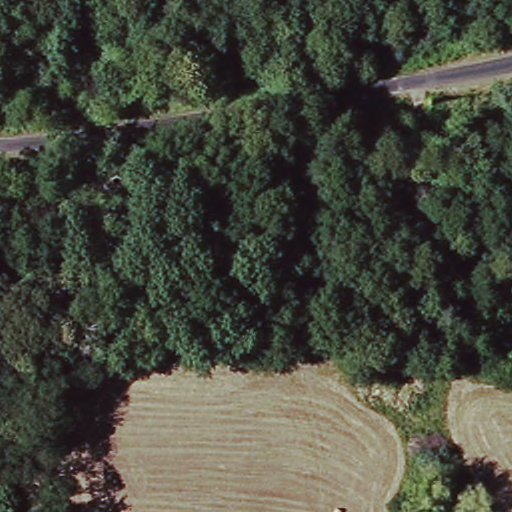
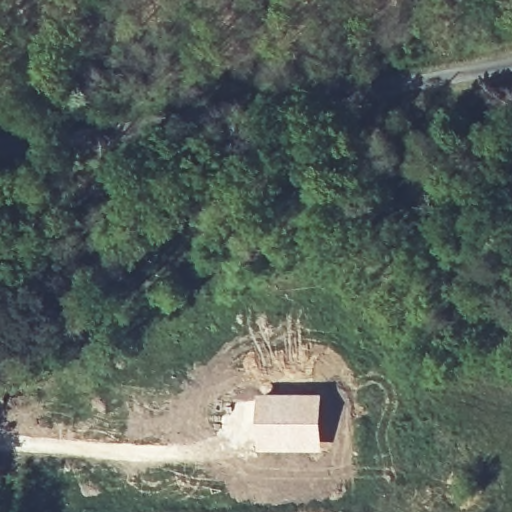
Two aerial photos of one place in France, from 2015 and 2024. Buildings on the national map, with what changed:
new [(258,393),(324,392),(323,452),(258,451),(258,393)]

